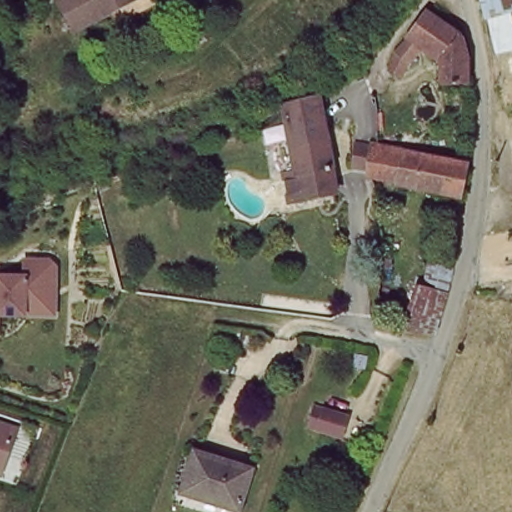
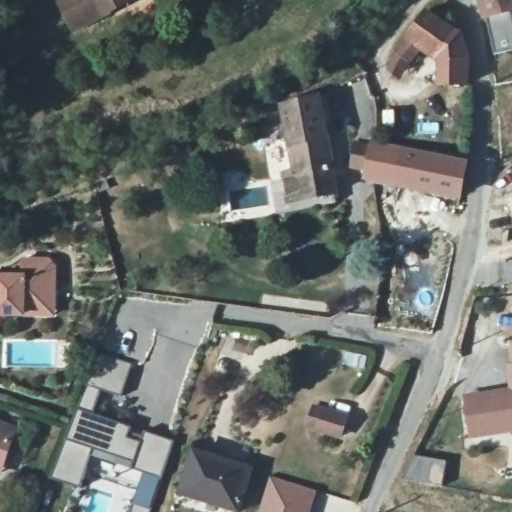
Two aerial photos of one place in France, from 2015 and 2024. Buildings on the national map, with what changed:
unchanged [(105,6),(109,12),(76,29),(59,0),(110,0),(112,2),(105,6)]
unchanged [(112,2),(110,0),(115,0),(112,2)]
demolished [(512,7),(484,13),(483,7),(482,0),(512,0),(512,7)]
new [(483,7),(482,0),(512,0),(512,7),(484,13),(483,7)]
new [(484,13),(507,8),(512,23),(512,48),(493,53),(484,13)]
unchanged [(439,90),(437,66),(422,46),(399,71),(385,67),(391,53),(430,14),(462,28),(465,55),(465,80),(439,90)]
unchanged [(336,193),(290,200),(285,170),(296,168),(284,101),(318,91),(336,193)]
unchanged [(471,160),(465,195),(440,191),(395,183),(397,175),(374,172),(369,171),(353,168),(357,144),(374,147),(383,148),(414,152),(447,157),(467,160),(471,160)]
unchanged [(1,316),(1,335),(0,336),(0,276),(23,274),(23,262),(56,259),(60,317),(1,316)]
unchanged [(430,262),(451,266),(449,277),(445,289),(425,286),(430,262)]
new [(509,347),(512,347),(512,369),(512,365),(509,347)]
new [(135,360),(124,400),(98,392),(91,417),(134,431),(129,445),(139,448),(143,438),(171,446),(162,479),(142,474),(91,457),(79,493),(50,484),(88,369),(94,370),(101,350),(135,360)]
new [(512,428),(468,434),(462,396),(507,389),(512,388),(512,428)]
unchanged [(355,417),(351,439),(313,429),(319,407),(355,417)]
unchanged [(20,427),(3,477),(0,476),(0,421),(20,427)]
unchanged [(250,469),(239,511),(182,494),(195,452),(250,469)]
new [(152,512),(130,512),(142,474),(162,479),(152,512)]
new [(310,512),(263,512),(272,482),(314,496),(310,512)]

